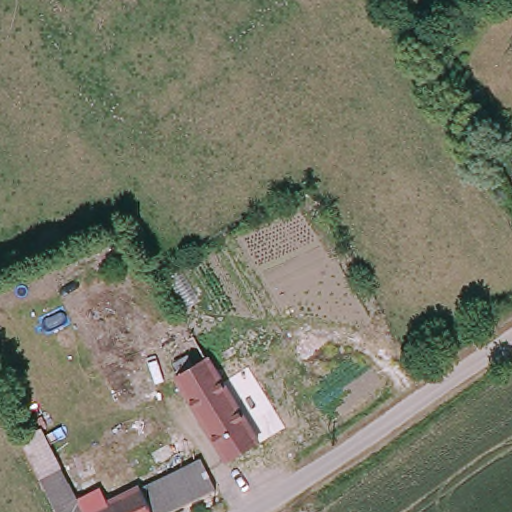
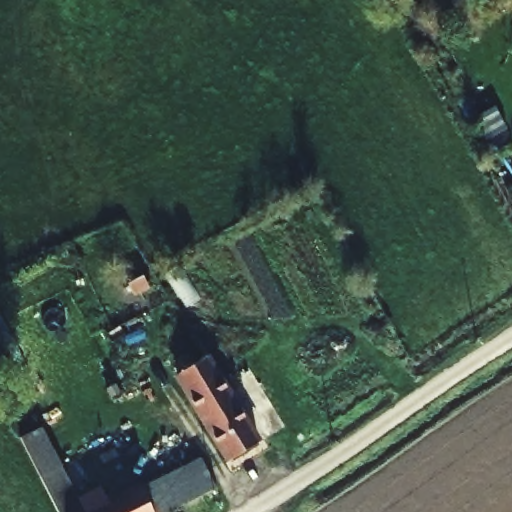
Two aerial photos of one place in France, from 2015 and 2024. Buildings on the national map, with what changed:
unchanged [(230,454),(180,374),(206,357),(256,439),(230,454)]
unchanged [(170,512),(57,512),(39,476),(60,466),(80,502),(99,493),(108,507),(199,461),(214,491),(170,512)]

